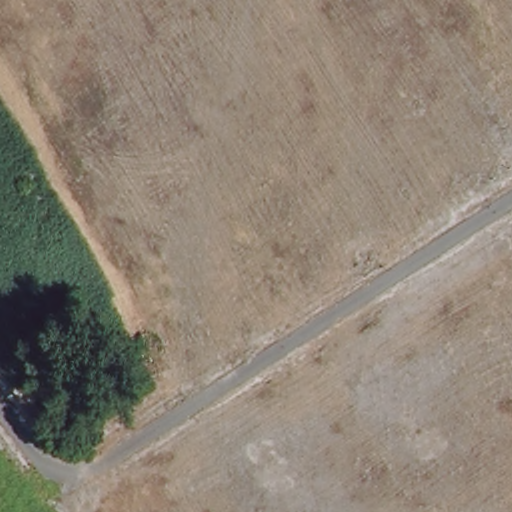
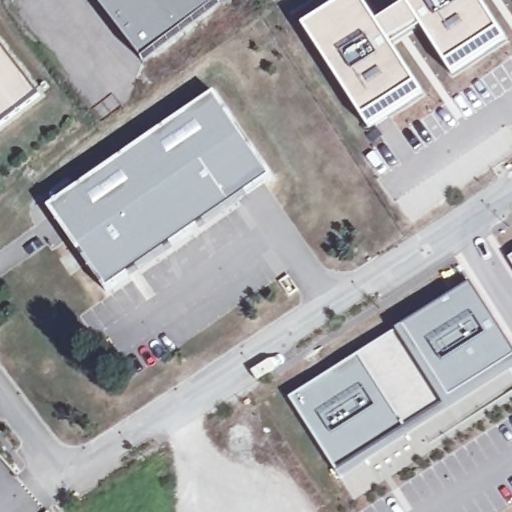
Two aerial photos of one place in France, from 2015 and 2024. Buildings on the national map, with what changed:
new [(219,4),(142,63),(94,0),(216,0),(219,4)]
new [(346,0),(361,0),(377,24),(406,4),(403,0),(480,0),(507,41),(453,76),(422,27),(391,47),(422,95),(370,130),(303,28),(346,0)]
new [(5,120),(0,113),(0,45),(38,95),(5,120)]
new [(213,93),(270,176),(118,281),(60,199),(213,93)]
new [(0,124),(0,113),(5,120),(0,124)]
new [(60,199),(118,281),(105,290),(48,208),(60,199)]
new [(508,258),(512,256),(512,264),(508,258)]
new [(470,282),(512,348),(512,360),(335,471),(288,397),(470,282)]

